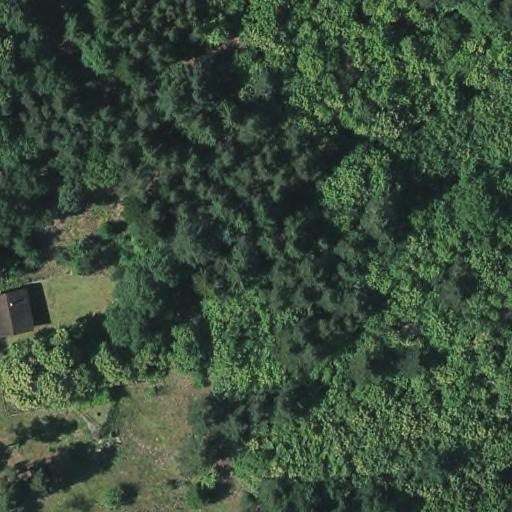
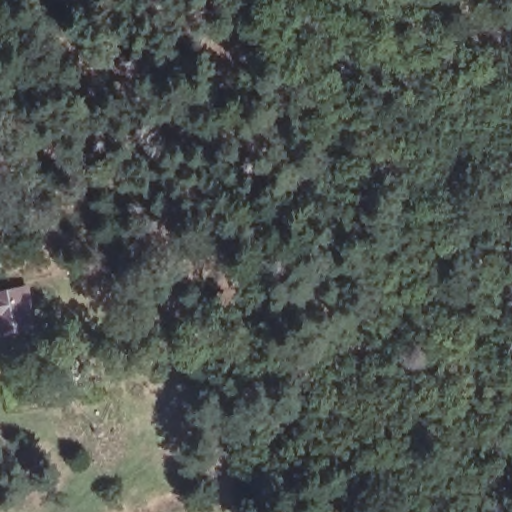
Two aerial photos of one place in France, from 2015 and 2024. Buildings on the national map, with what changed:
unchanged [(28,282),(31,329),(0,332),(0,287),(28,282)]

